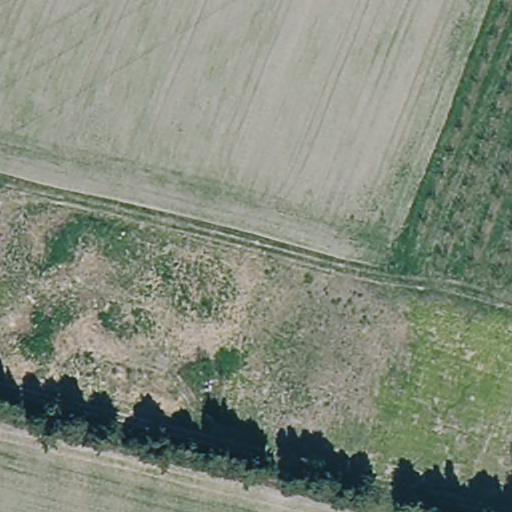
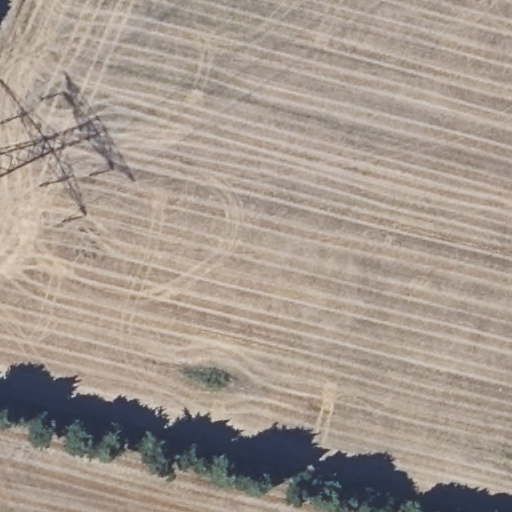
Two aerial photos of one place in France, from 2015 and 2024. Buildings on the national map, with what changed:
[]

